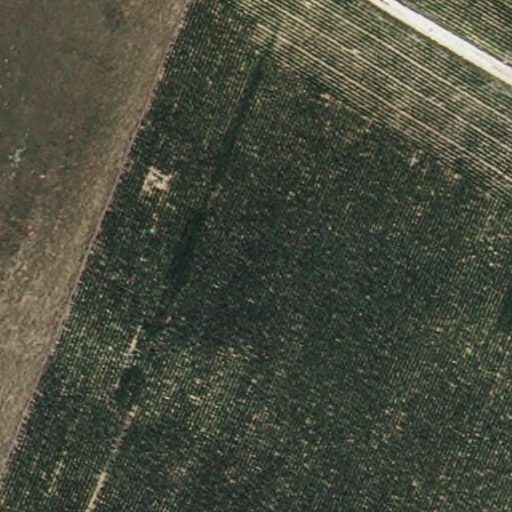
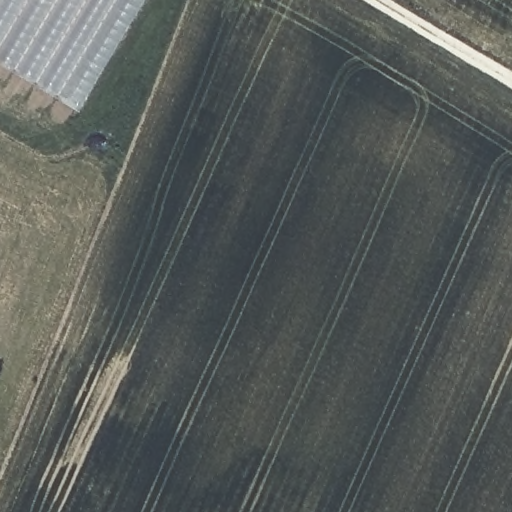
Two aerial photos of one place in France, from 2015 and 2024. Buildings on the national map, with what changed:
new [(0,0),(145,0),(78,112),(0,66),(0,0)]

